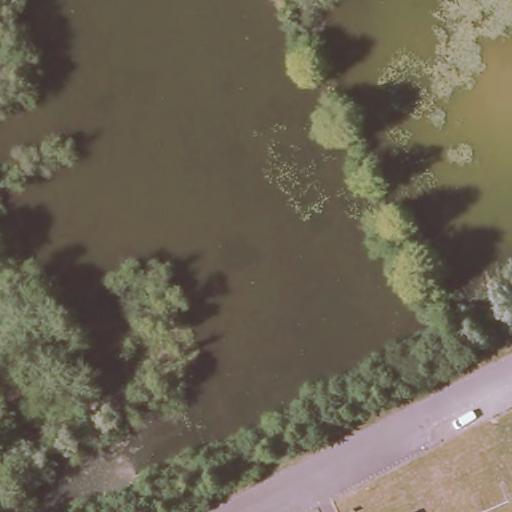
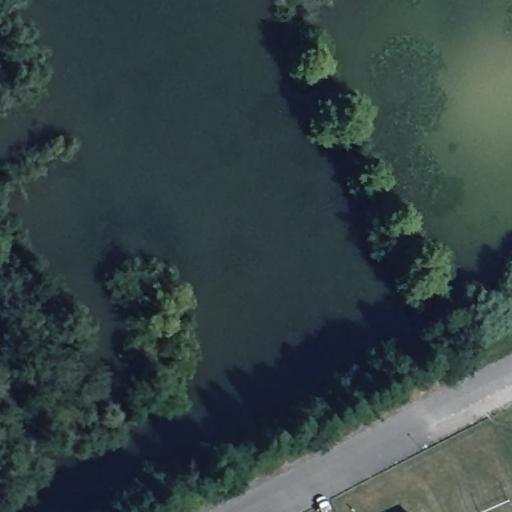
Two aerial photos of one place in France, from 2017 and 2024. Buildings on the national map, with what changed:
unchanged [(408,508),(410,512),(398,512),(408,508)]

